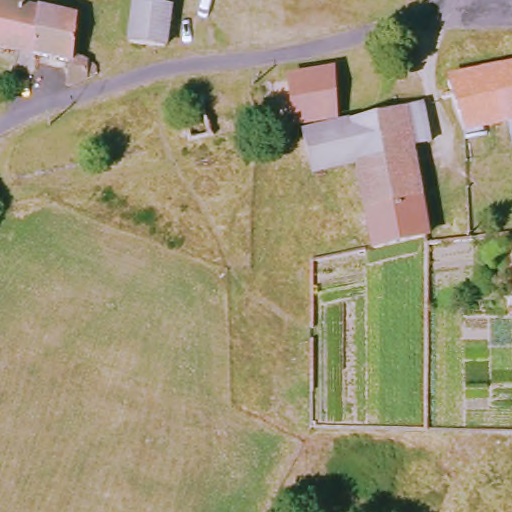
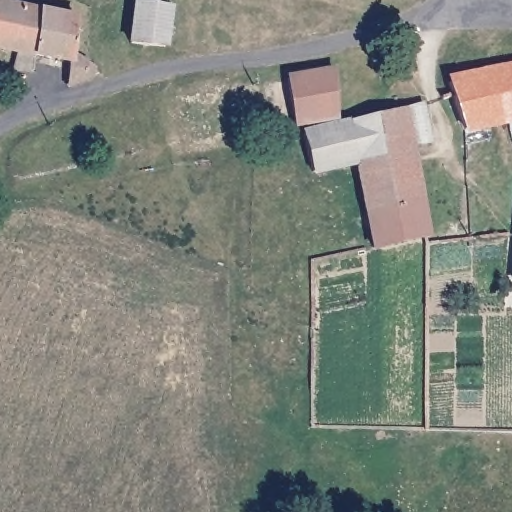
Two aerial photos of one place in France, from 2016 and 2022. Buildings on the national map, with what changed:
unchanged [(128,43),(131,1),(165,4),(161,46),(128,43)]
unchanged [(66,57),(0,49),(0,12),(69,22),(66,57)]
unchanged [(88,82),(64,89),(66,57),(90,69),(88,82)]
unchanged [(336,109),(290,118),(286,70),(334,64),(336,109)]
unchanged [(447,79),(512,64),(512,116),(462,127),(447,79)]
unchanged [(373,234),(359,153),(353,114),(404,103),(420,95),(426,138),(410,141),(422,228),(373,234)]
unchanged [(314,159),(307,125),(336,117),(353,114),(359,153),(314,159)]

